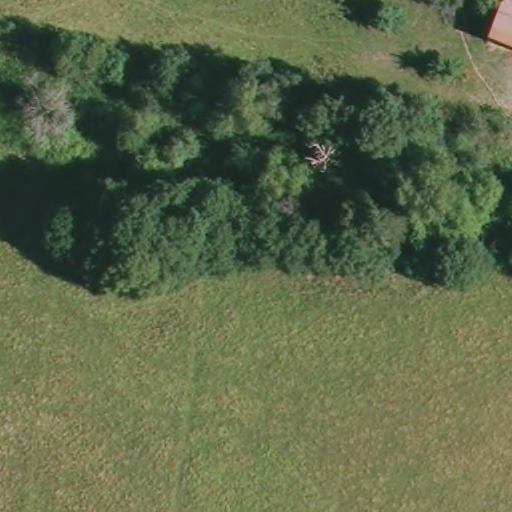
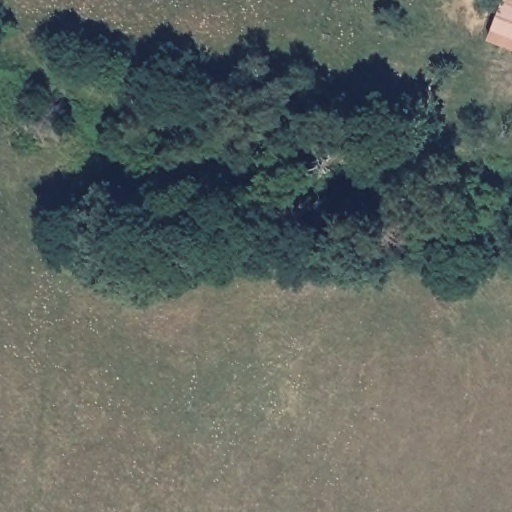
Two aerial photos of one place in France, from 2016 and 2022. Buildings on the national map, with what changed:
unchanged [(488,40),(504,0),(512,0),(512,50),(488,40)]

